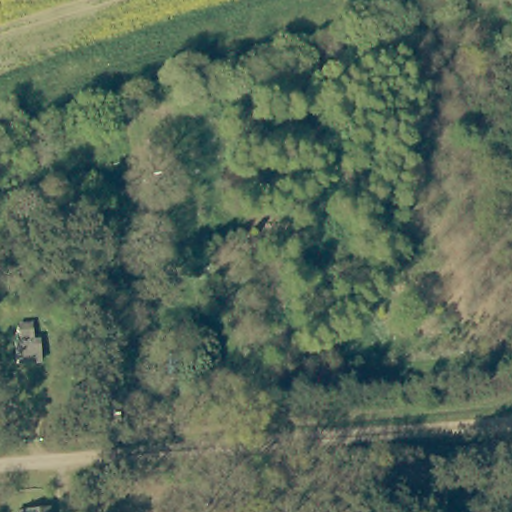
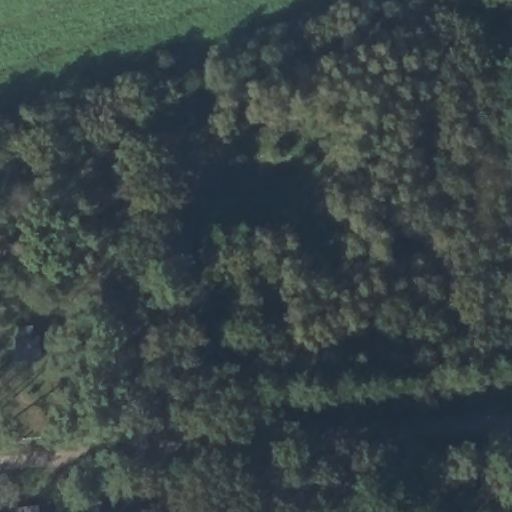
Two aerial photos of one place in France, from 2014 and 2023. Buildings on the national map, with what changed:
unchanged [(37,351),(17,353),(17,340),(22,339),(22,323),(30,323),(31,338),(37,338),(37,351)]
unchanged [(55,504),(55,512),(32,512),(32,506),(55,504)]

